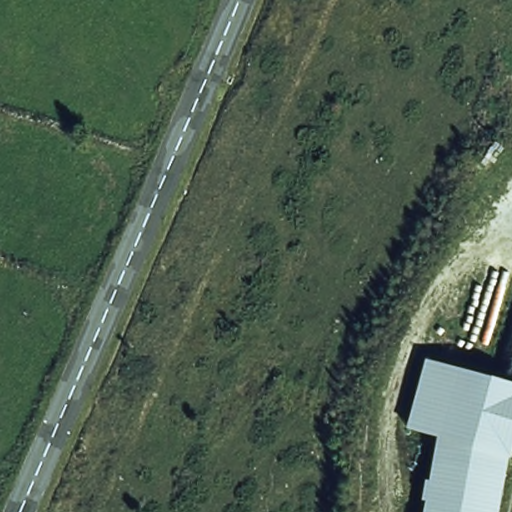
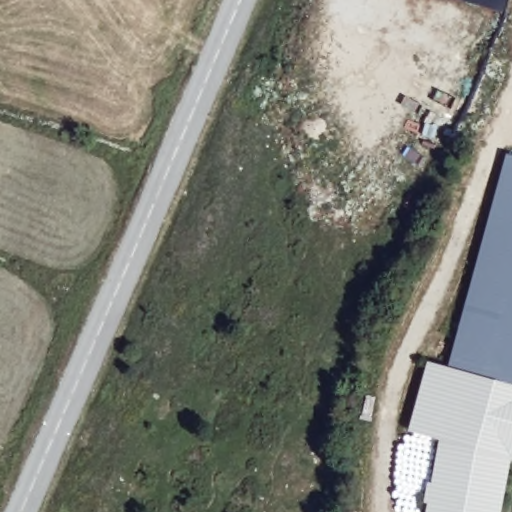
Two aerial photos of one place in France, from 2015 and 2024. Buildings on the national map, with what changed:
new [(504,12),(461,0),(507,0),(504,12)]
new [(512,156),(512,386),(447,368),(505,154),(512,156)]
unchanged [(512,386),(512,484),(504,512),(422,512),(434,444),(406,433),(425,362),(512,386)]

